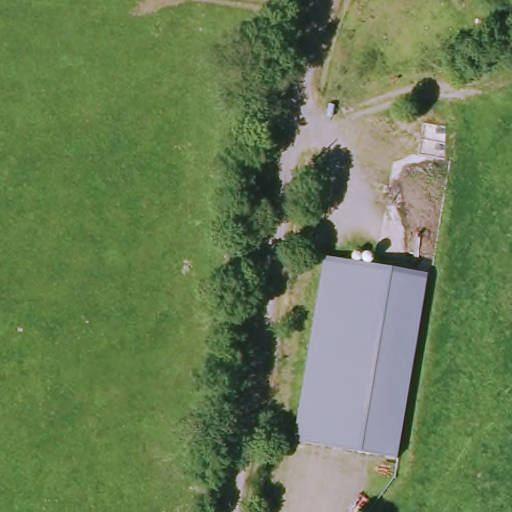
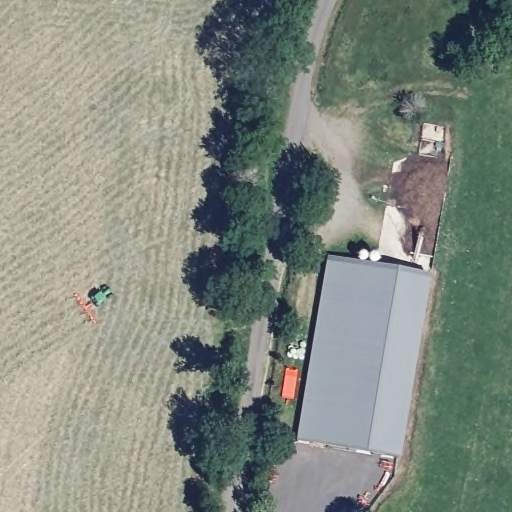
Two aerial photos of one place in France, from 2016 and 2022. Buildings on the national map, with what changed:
unchanged [(322,258),(423,270),(405,455),(303,445),(322,258)]

